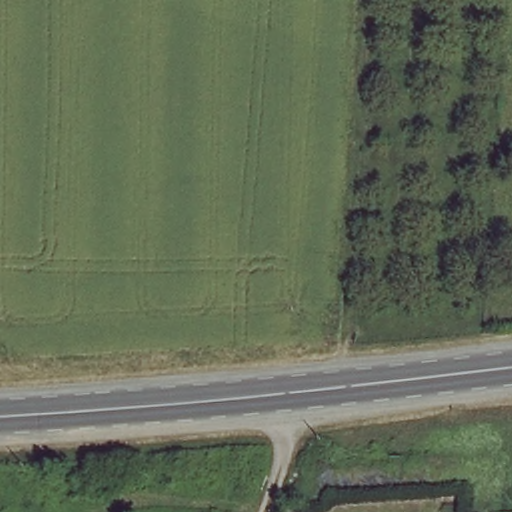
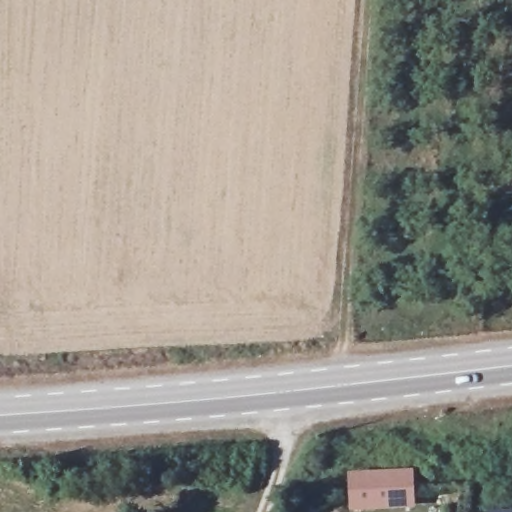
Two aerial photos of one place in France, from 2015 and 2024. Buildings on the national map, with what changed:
new [(409,472),(410,505),(350,507),(349,474),(409,472)]
new [(491,509),(512,509),(512,512),(491,512),(491,509)]

